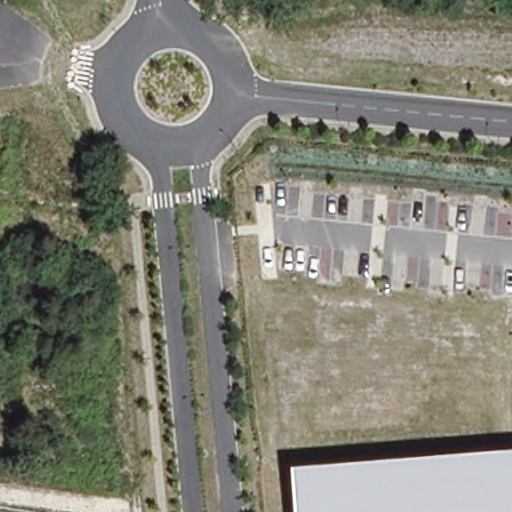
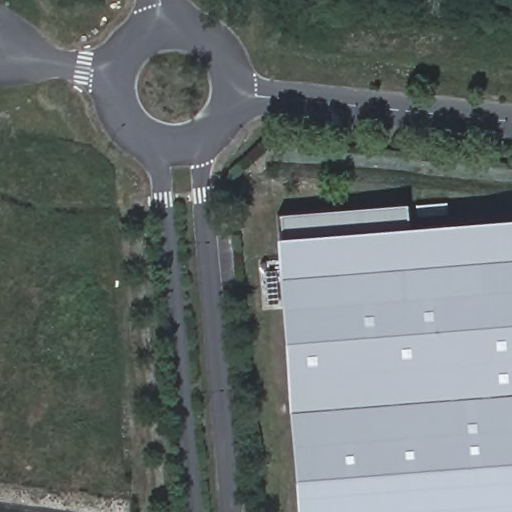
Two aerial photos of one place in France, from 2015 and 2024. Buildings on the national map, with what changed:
new [(278,236),(275,212),(400,205),(404,227),(512,219),(512,453),(292,469),(271,237),(278,236)]
unchanged [(292,469),(512,453),(512,512),(295,512),(292,469)]

